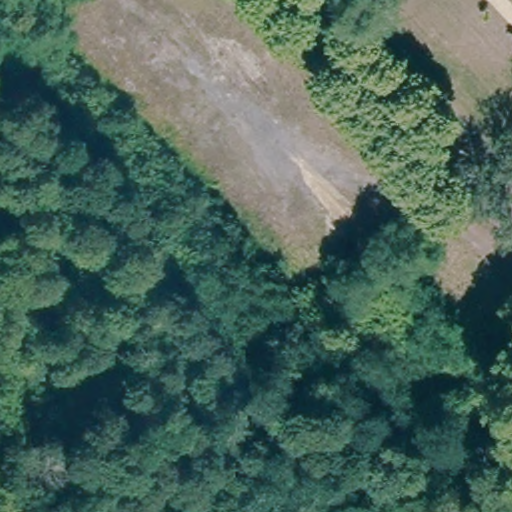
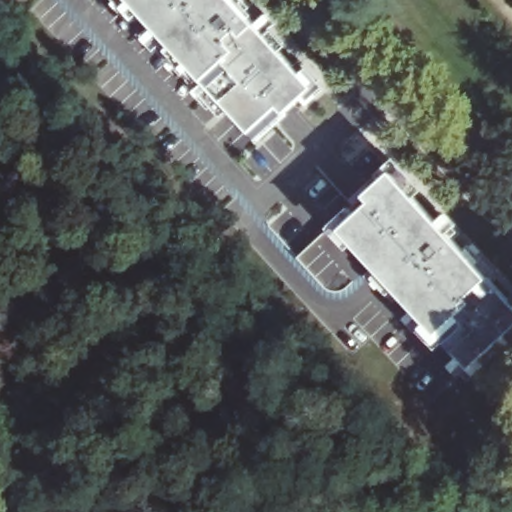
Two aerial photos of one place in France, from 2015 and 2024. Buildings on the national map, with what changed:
new [(254,24),(312,87),(285,112),(279,105),(251,130),(204,80),(133,0),(233,0),(254,24)]
new [(488,277),(512,303),(512,330),(467,367),(432,330),(340,228),(372,202),(365,195),(391,172),(488,277)]

